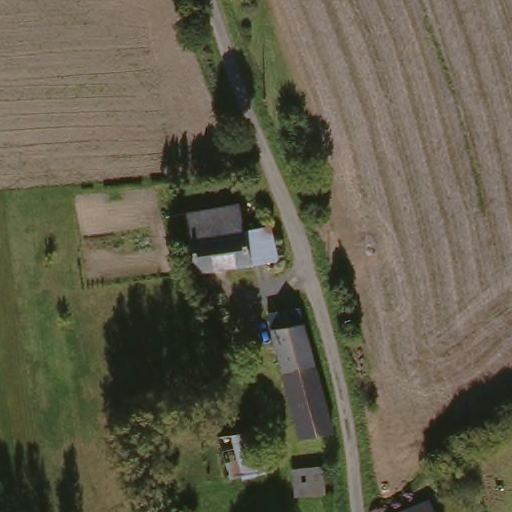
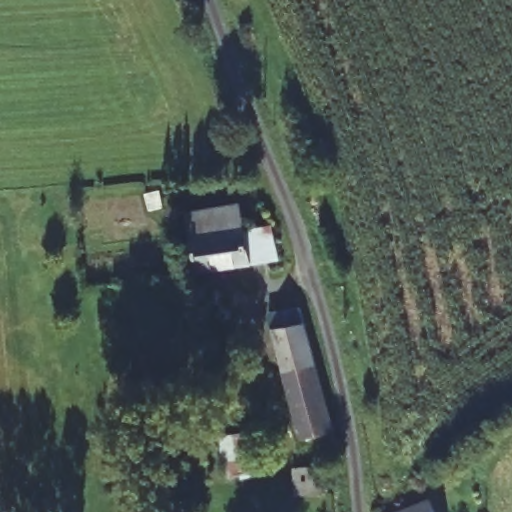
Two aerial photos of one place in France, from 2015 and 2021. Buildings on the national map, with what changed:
unchanged [(266,226),(266,227),(271,261),(244,264),(187,271),(184,264),(178,230),(176,222),(174,219),(232,213),(232,228),(241,228),(253,227),(266,226)]
unchanged [(296,444),(262,316),(295,308),(329,436),(296,444)]
unchanged [(260,433),(272,475),(221,487),(227,448),(228,439),(260,433)]
unchanged [(287,495),(286,469),(317,466),(320,493),(287,495)]
unchanged [(438,512),(421,512),(436,508),(438,512)]

